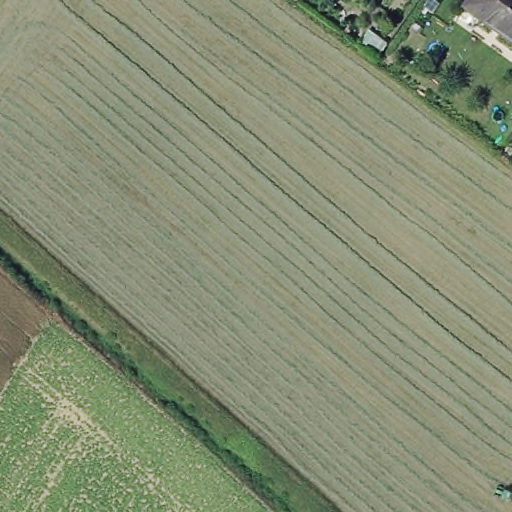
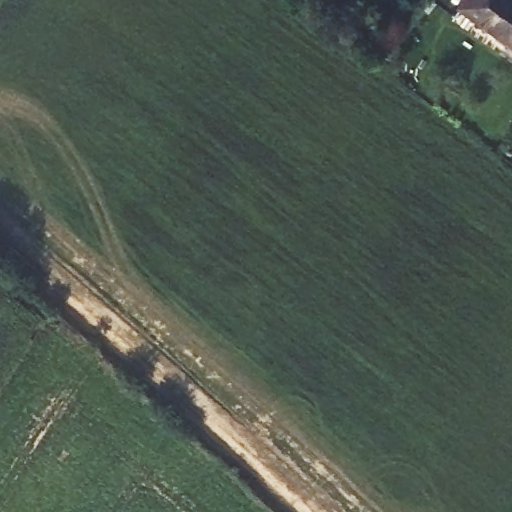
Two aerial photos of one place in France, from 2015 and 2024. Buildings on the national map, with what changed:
unchanged [(512,0),(512,42),(495,30),(462,6),(466,0),(512,0)]
unchanged [(367,31),(386,45),(382,50),(376,58),(364,50),(368,45),(361,40),(367,31)]

